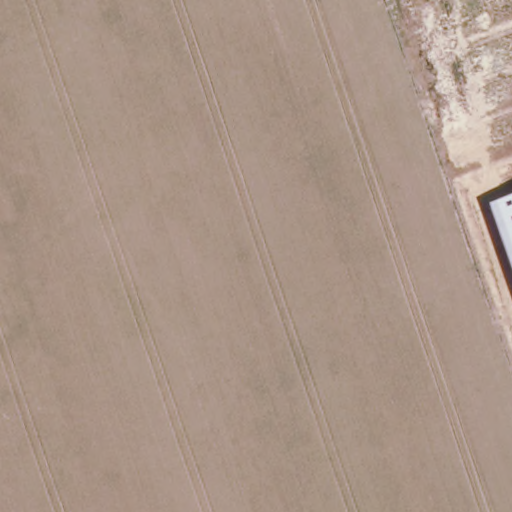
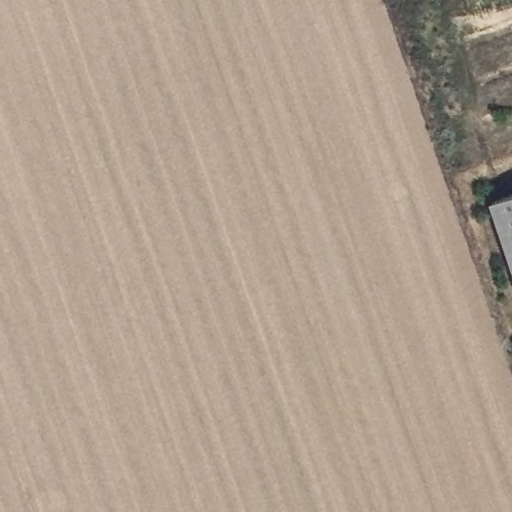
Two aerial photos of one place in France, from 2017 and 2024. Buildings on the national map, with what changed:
unchanged [(489,206),(512,199),(512,273),(489,206)]

